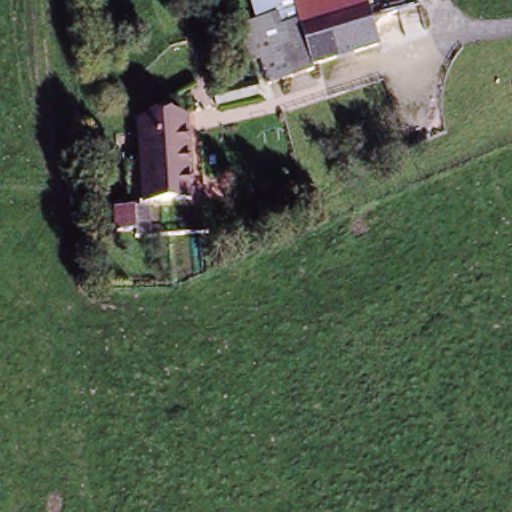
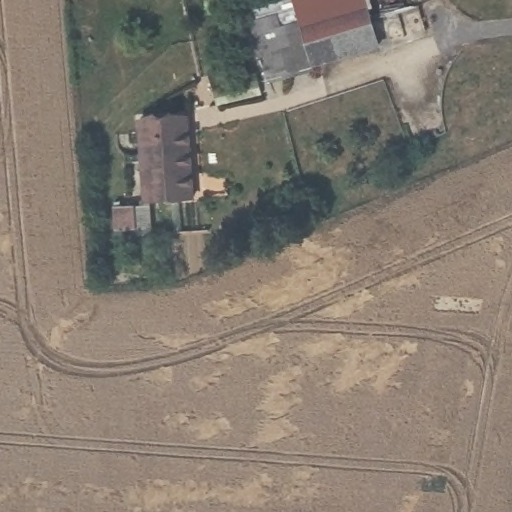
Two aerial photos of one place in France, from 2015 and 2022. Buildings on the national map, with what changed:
unchanged [(291,0),(360,0),(304,28),(300,21),(291,0)]
unchanged [(304,28),(360,0),(367,0),(375,17),(385,37),(370,45),(322,67),(304,28)]
unchanged [(279,90),(256,42),(300,21),(304,28),(322,67),(279,90)]
unchanged [(141,169),(137,130),(153,127),(172,125),(183,123),(186,139),(194,202),(166,207),(146,211),(141,169)]

